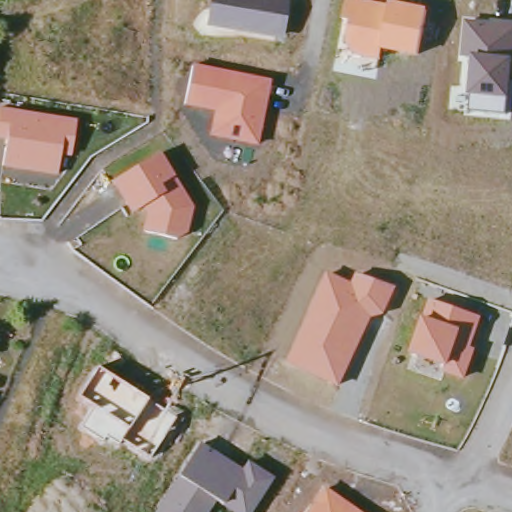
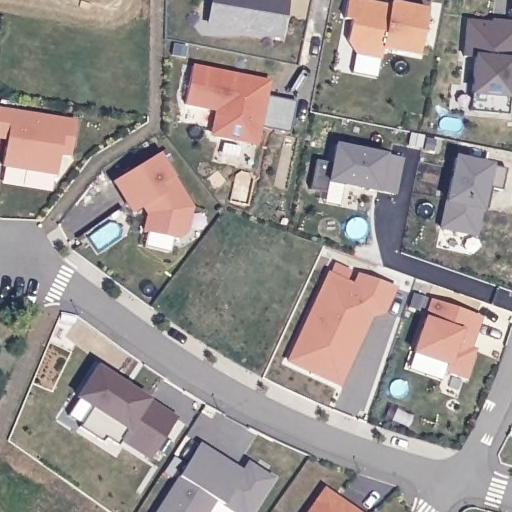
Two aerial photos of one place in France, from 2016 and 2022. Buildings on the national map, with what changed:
unchanged [(289,0),(281,40),(206,27),(210,0),(289,0)]
unchanged [(346,44),(351,20),(344,18),(348,0),(363,0),(390,5),(391,1),(429,8),(419,55),(381,49),(381,60),(354,55),(346,44)]
unchanged [(474,56),(461,56),(465,21),(491,24),(491,19),(512,22),(512,81),(509,100),(507,114),(470,111),(472,95),(474,56)]
unchanged [(193,65),(271,81),(258,146),(208,136),(213,111),(183,105),(193,65)]
unchanged [(8,139),(0,138),(0,108),(77,120),(71,158),(60,156),(58,176),(3,168),(8,139)]
new [(376,192),(326,184),(333,144),(386,155),(402,159),(395,195),(376,192)]
unchanged [(146,215),(141,206),(131,213),(109,182),(161,151),(194,206),(188,232),(176,239),(143,230),(146,215)]
new [(491,188),(486,208),(481,207),(480,212),(476,235),(438,229),(443,202),(454,156),(491,164),(505,170),(499,191),(491,188)]
unchanged [(286,361),(328,271),(353,283),(356,275),(397,287),(385,314),(373,317),(340,387),(286,361)]
unchanged [(443,371),(446,365),(412,354),(424,317),(429,300),(482,316),(471,348),(476,350),(465,378),(443,371)]
unchanged [(98,368),(147,400),(174,418),(149,458),(120,440),(118,445),(105,437),(103,442),(81,427),(93,408),(78,397),(98,368)]
unchanged [(178,476),(199,444),(241,470),(246,461),(274,478),(252,512),(233,512),(223,505),(216,500),(208,512),(154,512),(178,476)]
unchanged [(324,487),(360,512),(306,512),(324,487)]

